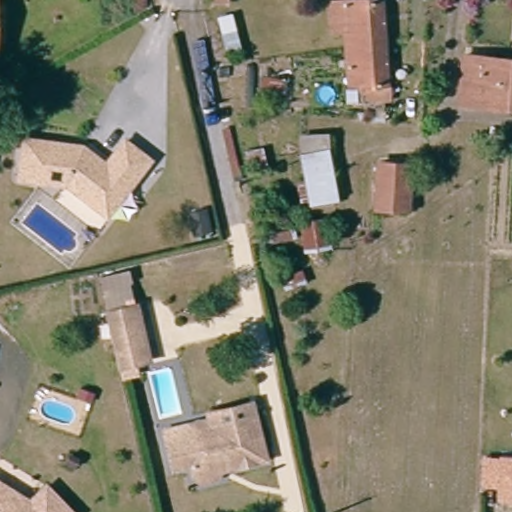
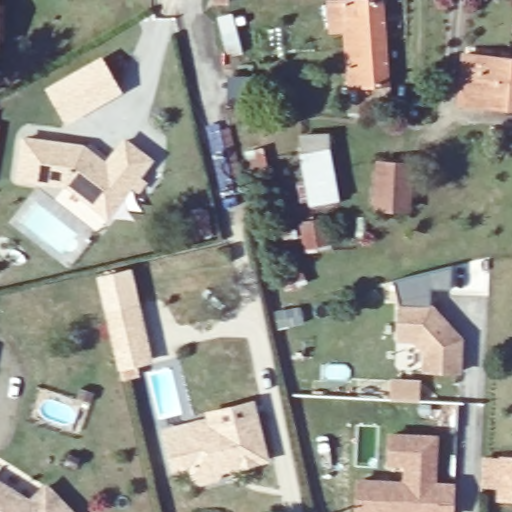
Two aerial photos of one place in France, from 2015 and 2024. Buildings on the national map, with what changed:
unchanged [(350,90),(341,0),(377,0),(387,86),(350,90)]
new [(121,91),(66,123),(46,86),(101,54),(121,91)]
unchanged [(512,104),(457,96),(464,54),(512,62),(512,104)]
unchanged [(330,145),(342,203),(291,210),(285,183),(303,178),(296,154),(298,131),(329,131),(330,145)]
unchanged [(97,208),(65,183),(17,176),(23,136),(81,145),(104,164),(123,140),(148,160),(121,194),(105,214),(97,208)]
unchanged [(409,211),(378,210),(380,166),(412,167),(409,211)]
new [(107,311),(97,277),(132,270),(138,304),(107,311)]
new [(412,342),(398,341),(397,301),(430,303),(462,338),(461,374),(423,372),(423,352),(412,342)]
unchanged [(138,304),(150,358),(120,365),(107,311),(138,304)]
unchanged [(198,476),(194,476),(191,464),(173,468),(170,452),(165,430),(188,424),(209,420),(211,429),(215,428),(213,416),(255,407),(257,420),(259,428),(267,460),(229,468),(220,470),(217,471),(218,477),(199,481),(198,476)]
new [(434,437),(431,512),(394,512),(357,511),(359,479),(379,481),(379,487),(406,489),(407,462),(390,461),(390,435),(434,437)]
unchanged [(500,455),(512,455),(512,496),(498,496),(500,455)]
unchanged [(20,493),(33,501),(48,485),(74,512),(0,512),(0,480),(20,493)]

